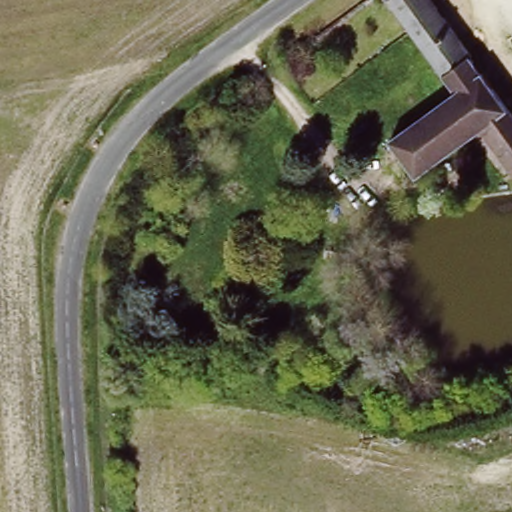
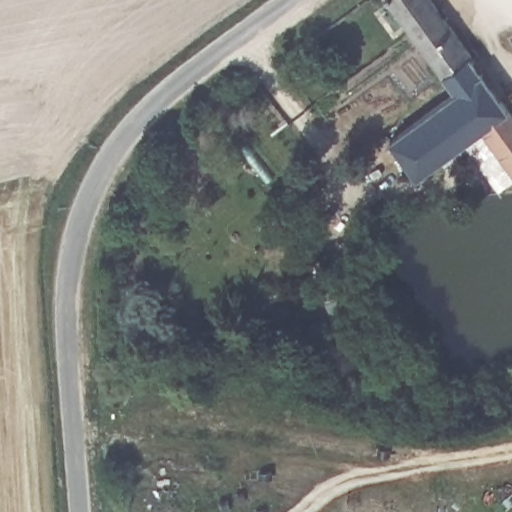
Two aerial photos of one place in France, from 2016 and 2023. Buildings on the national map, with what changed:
unchanged [(381,0),(434,0),(512,108),(512,176),(511,177),(482,139),(422,177),(391,139),(447,95),(381,0)]

